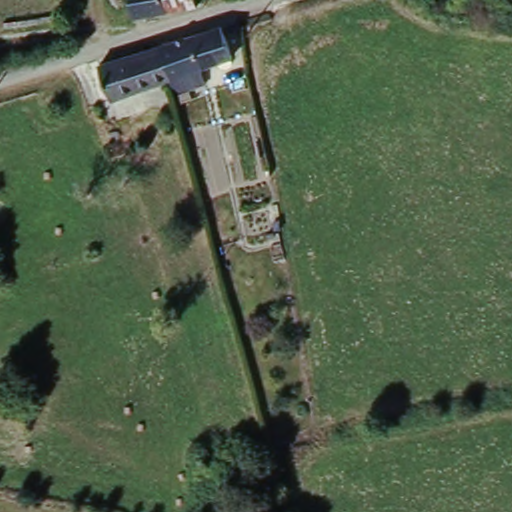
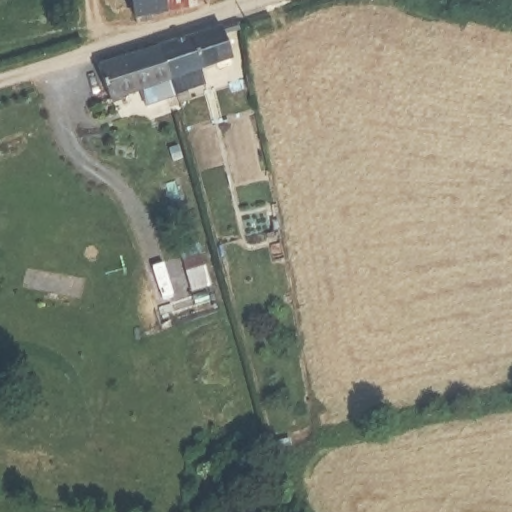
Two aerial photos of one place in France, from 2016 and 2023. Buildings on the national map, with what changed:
unchanged [(136,19),(132,0),(196,0),(196,3),(136,19)]
unchanged [(235,64),(206,72),(212,91),(181,101),(174,82),(162,50),(226,30),(235,64)]
unchanged [(117,101),(107,67),(110,66),(162,50),(174,82),(117,101)]

